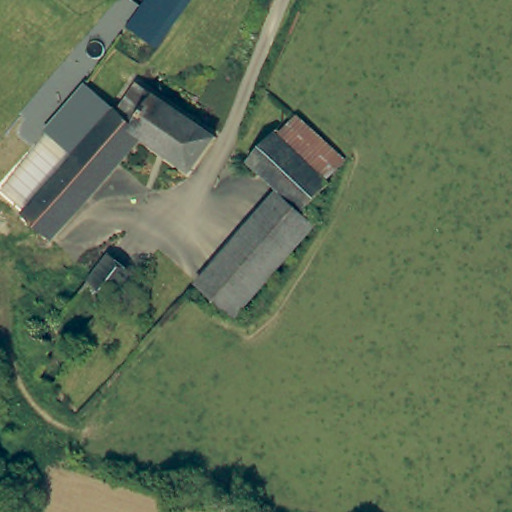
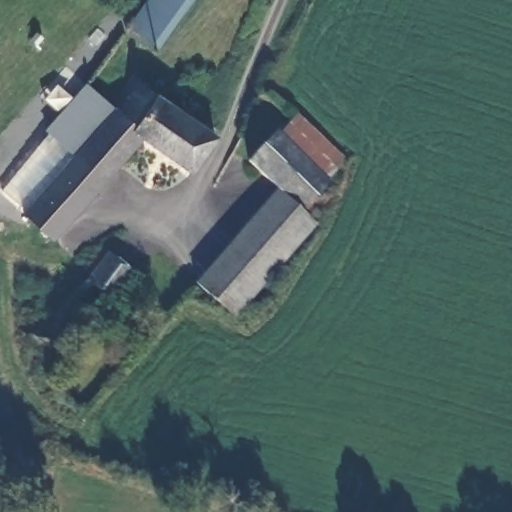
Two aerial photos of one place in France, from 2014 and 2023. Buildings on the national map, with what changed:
unchanged [(138,38),(160,0),(193,0),(163,53),(138,38)]
unchanged [(118,110),(25,213),(0,190),(0,180),(85,82),(118,110)]
unchanged [(25,213),(118,110),(139,86),(219,139),(192,173),(146,142),(53,245),(21,217),(25,213)]
unchanged [(292,114),(339,157),(319,177),(273,135),(292,114)]
unchanged [(268,131),(273,135),(319,177),(324,181),(302,207),(278,185),(245,156),(268,131)]
unchanged [(240,318),(201,284),(278,185),(302,207),(314,219),(240,318)]
unchanged [(53,311),(69,321),(114,258),(141,277),(90,348),(70,334),(61,351),(59,350),(53,362),(39,356),(45,344),(38,340),(48,322),(53,311)]

